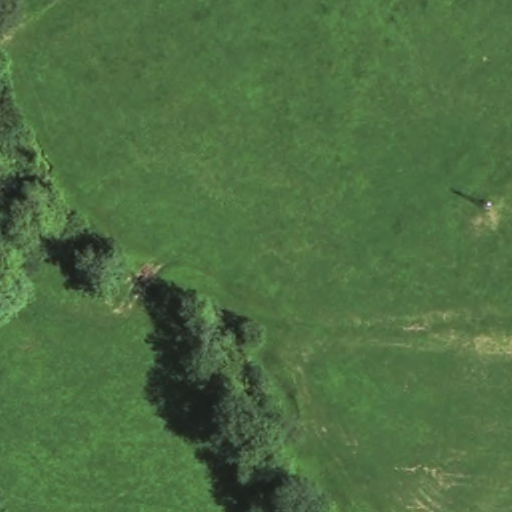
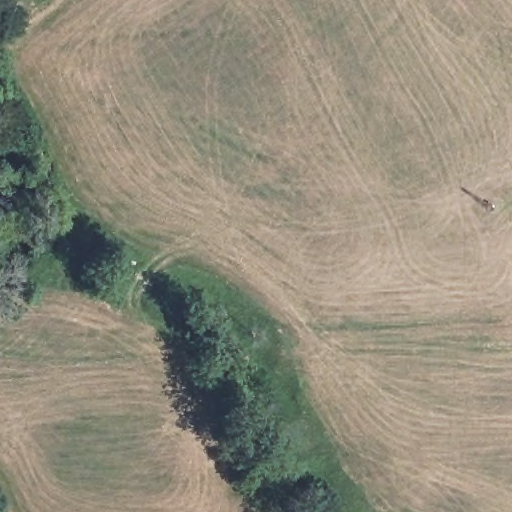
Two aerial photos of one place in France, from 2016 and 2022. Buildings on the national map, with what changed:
[]

